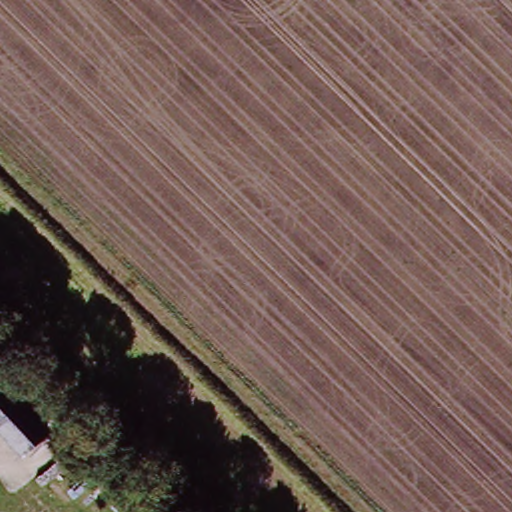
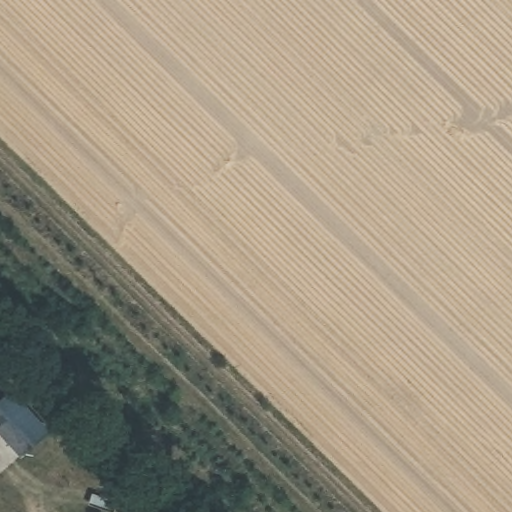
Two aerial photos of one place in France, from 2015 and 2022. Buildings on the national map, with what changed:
unchanged [(1,400),(35,438),(17,454),(0,434),(0,401),(1,400)]

